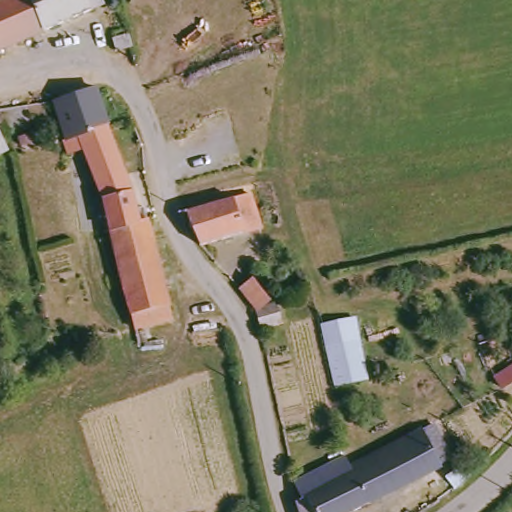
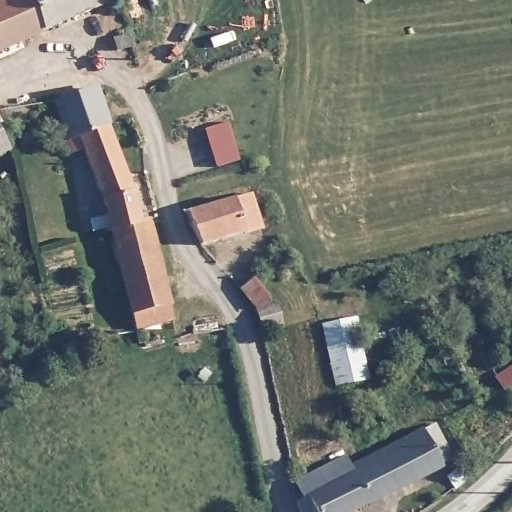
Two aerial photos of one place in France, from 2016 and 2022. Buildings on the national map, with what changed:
unchanged [(0,43),(0,0),(94,0),(95,2),(0,43)]
unchanged [(127,54),(114,59),(109,45),(122,41),(127,54)]
unchanged [(4,54),(4,60),(0,64),(0,50),(4,54)]
unchanged [(110,119),(67,129),(59,99),(73,96),(72,91),(82,87),(84,92),(97,90),(110,119)]
unchanged [(145,203),(149,216),(114,228),(108,202),(85,143),(71,147),(67,129),(110,119),(145,203)]
new [(217,166),(205,129),(228,122),(240,158),(217,166)]
unchanged [(0,150),(0,129),(9,145),(0,150)]
unchanged [(256,222),(195,246),(184,212),(182,204),(247,189),(256,222)]
unchanged [(165,271),(179,310),(169,313),(135,321),(114,228),(149,216),(165,271)]
unchanged [(250,274),(264,288),(247,302),(233,287),(250,274)]
unchanged [(272,297),(279,319),(257,327),(250,306),(272,297)]
unchanged [(318,319),(357,310),(370,372),(336,383),(318,319)]
unchanged [(512,361),(512,394),(498,369),(512,361)]
unchanged [(363,512),(300,512),(300,510),(307,506),(301,486),(345,462),(352,471),(437,424),(457,459),(363,512)]

